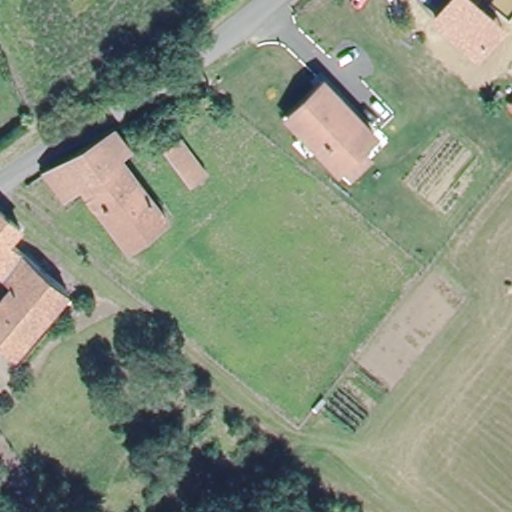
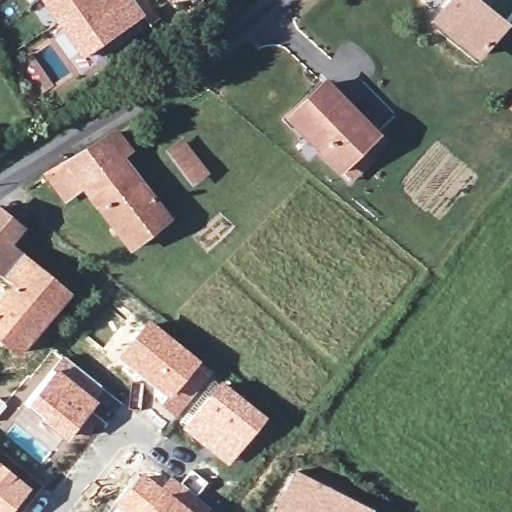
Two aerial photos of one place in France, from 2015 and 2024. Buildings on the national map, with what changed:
new [(80,57),(40,0),(134,0),(144,15),(80,57)]
new [(174,4),(170,0),(178,0),(174,4)]
unchanged [(478,0),(508,27),(478,62),(430,21),(447,0),(478,0)]
unchanged [(346,173),(335,162),(289,113),(321,81),(368,131),(356,142),(367,154),(346,173)]
unchanged [(117,128),(130,147),(118,156),(165,216),(127,244),(82,183),(62,197),(44,172),(64,160),(104,136),(117,128)]
unchanged [(203,176),(194,182),(176,155),(186,149),(203,176)]
unchanged [(0,336),(0,299),(13,283),(0,273),(0,212),(19,227),(8,240),(65,289),(46,312),(15,348),(0,336)]
new [(149,319),(201,361),(166,398),(117,358),(149,319)]
new [(63,356),(104,388),(96,398),(99,401),(64,442),(25,406),(55,366),(63,356)]
new [(166,398),(201,361),(212,372),(175,418),(160,406),(166,398)]
new [(220,380),(267,418),(228,466),(182,428),(220,380)]
new [(31,488),(12,512),(0,512),(0,464),(31,488)]
new [(181,482),(191,469),(208,482),(197,496),(211,508),(208,512),(193,512),(161,486),(171,474),(181,482)]
new [(297,471),(373,511),(372,512),(275,512),(277,510),(297,471)]
new [(142,472),(161,486),(193,512),(111,512),(114,509),(142,472)]
new [(404,512),(401,512),(403,510),(404,512)]

